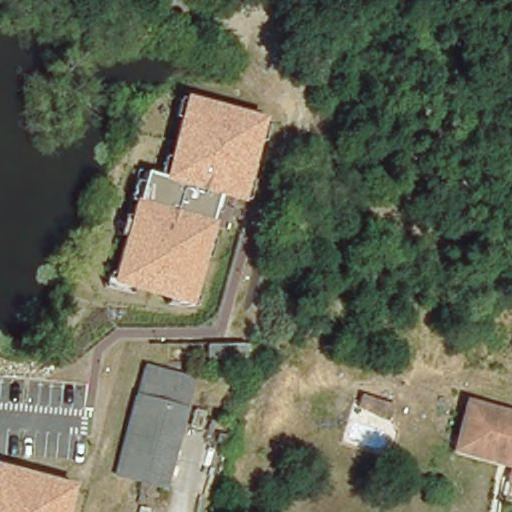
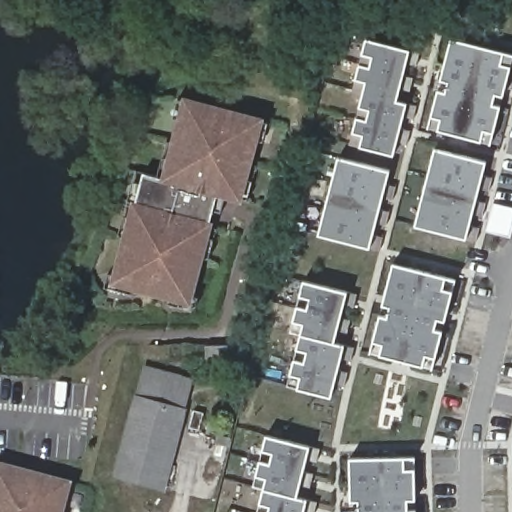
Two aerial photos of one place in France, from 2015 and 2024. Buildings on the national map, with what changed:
new [(354,134),(363,94),(354,91),(357,80),(367,41),(413,51),(422,54),(420,67),(410,65),(407,76),(417,79),(413,93),(403,91),(401,103),(411,105),(420,107),(417,121),(407,118),(405,130),(415,133),(411,146),(401,143),(397,158),(361,148),(351,146),(354,134)]
new [(486,145),(437,132),(430,131),(433,120),(440,93),(447,95),(450,85),(442,83),(452,41),(512,56),(512,69),(505,98),(497,96),(495,106),(502,108),(496,135),(493,146),(486,145)]
unchanged [(240,199),(227,196),(224,211),(215,209),(190,301),(117,282),(147,173),(170,179),(191,101),(261,120),(240,199)]
new [(478,242),(468,239),(417,227),(436,149),(487,161),(478,201),(488,203),(485,216),(475,214),(472,226),(482,228),(478,242)]
new [(385,251),(375,248),(317,234),(336,156),(394,170),(391,184),(400,187),(397,200),(387,197),(384,209),(394,212),(391,225),(381,223),(378,235),(387,237),(385,251)]
new [(485,176),(494,178),(491,191),(481,189),(485,176)]
new [(496,205),(512,208),(512,238),(488,233),(496,205)]
new [(427,366),(378,353),(372,352),(375,340),(381,313),(388,316),(391,306),(383,304),(393,262),(457,277),(447,319),(438,317),(436,327),(444,329),(437,356),(435,367),(427,366)]
new [(292,373),(302,334),(292,331),(295,320),(305,280),(347,290),(357,293),(355,306),(345,304),(342,316),(352,318),(348,332),(338,329),(336,341),(346,344),(356,346),(352,360),(342,357),(340,369),(350,372),(346,385),(337,382),(333,396),(298,388),(289,386),(292,373)]
unchanged [(249,363),(207,364),(206,345),(248,344),(249,363)]
unchanged [(136,375),(184,388),(175,418),(127,404),(136,375)]
demolished [(395,405),(391,418),(357,407),(362,395),(395,405)]
demolished [(503,482),(508,467),(510,459),(452,444),(461,403),(512,415),(512,484),(503,482)]
unchanged [(175,418),(152,496),(105,483),(127,404),(175,418)]
new [(265,489),(255,486),(258,475),(267,435),(312,446),(299,496),(310,499),(306,512),(259,512),(265,489)]
new [(352,511),(360,511),(360,501),(352,501),(351,458),(416,456),(417,499),(409,499),(410,509),(417,509),(417,512),(352,512),(352,511)]
unchanged [(0,465),(73,485),(66,512),(0,512),(0,465)]

